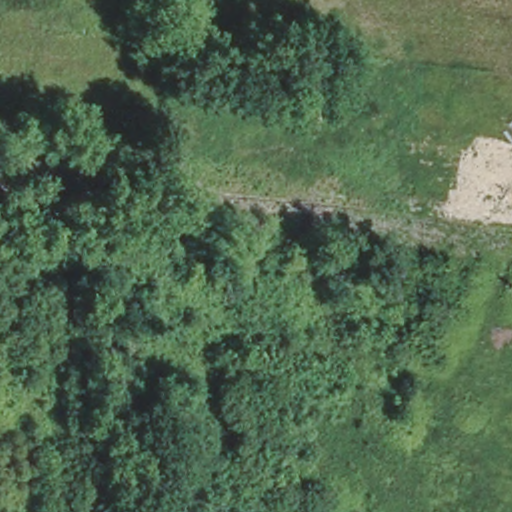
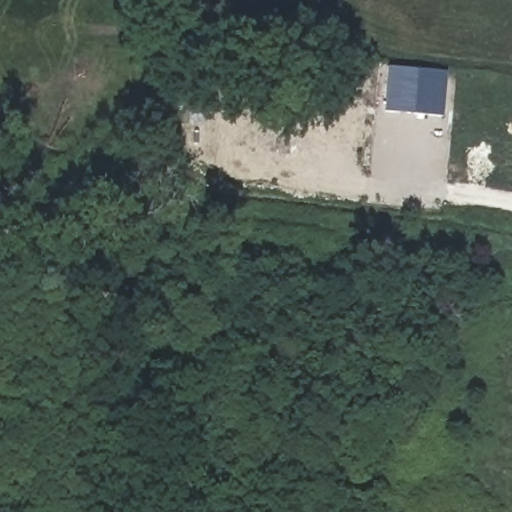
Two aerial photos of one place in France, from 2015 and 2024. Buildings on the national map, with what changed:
new [(387,65),(444,71),(441,115),(383,110),(387,65)]

